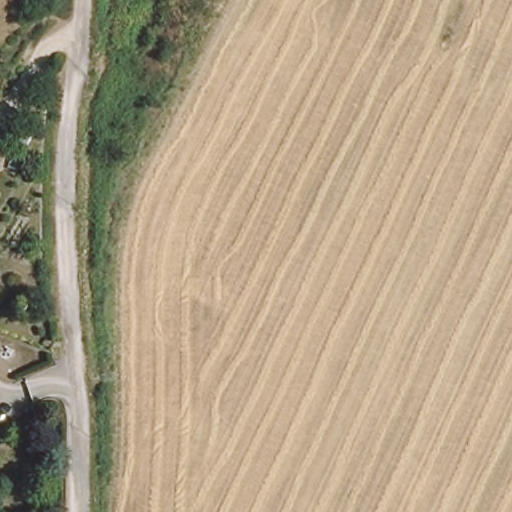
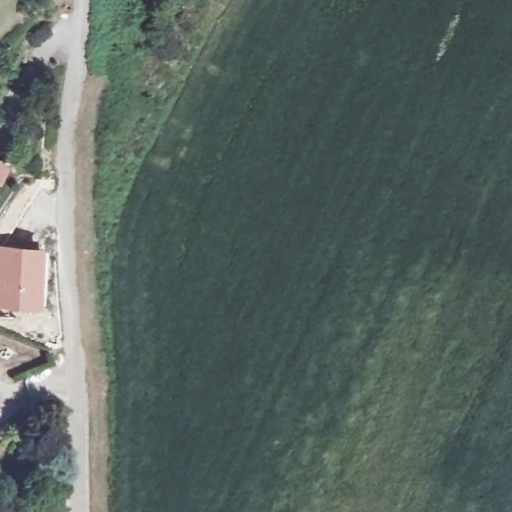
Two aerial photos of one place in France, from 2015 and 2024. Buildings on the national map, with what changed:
new [(41,307),(0,305),(0,243),(45,246),(41,307)]

